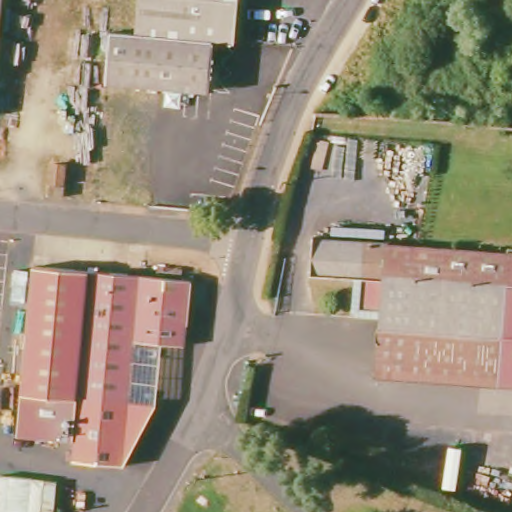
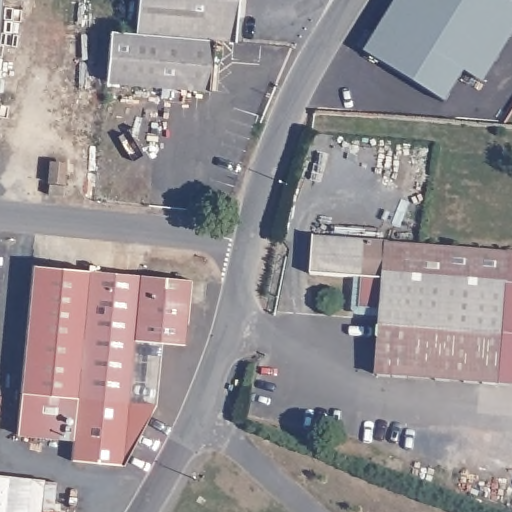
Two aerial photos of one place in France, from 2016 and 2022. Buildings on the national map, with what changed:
unchanged [(0,0),(3,0),(0,27),(0,0)]
unchanged [(134,35),(138,0),(240,0),(236,46),(211,44),(134,35)]
new [(497,0),(512,9),(512,36),(481,87),(462,76),(444,106),(364,59),(399,0),(497,0)]
unchanged [(134,35),(211,44),(205,94),(108,83),(113,31),(134,35)]
unchanged [(49,185),(64,186),(64,196),(48,195),(49,185)]
unchanged [(315,237),(335,240),(337,228),(385,230),(385,242),(512,255),(512,391),(375,383),(381,316),(353,316),(355,280),(310,280),(315,237)]
unchanged [(29,282),(30,270),(87,275),(139,280),(189,283),(184,348),(159,346),(154,410),(123,467),(70,463),(72,443),(15,440),(18,397),(23,353),(6,351),(11,282),(29,282)]
unchanged [(52,512),(0,512),(0,478),(55,484),(52,512)]

